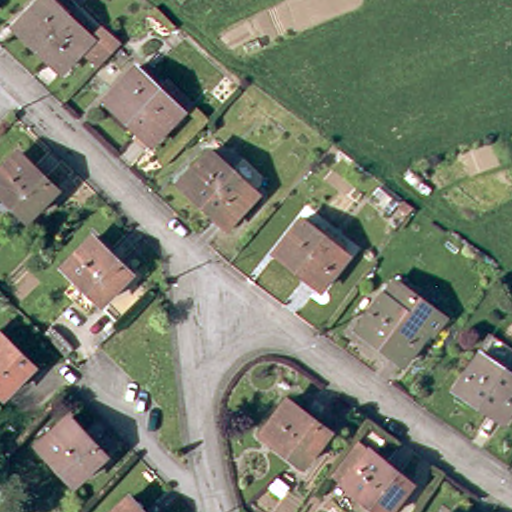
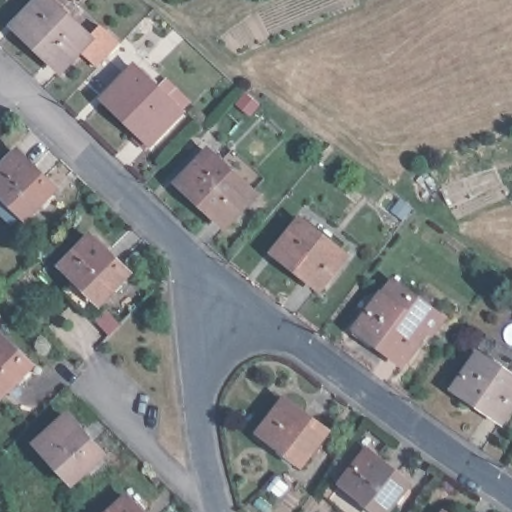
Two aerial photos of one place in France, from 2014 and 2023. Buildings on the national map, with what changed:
unchanged [(111,38),(88,62),(71,47),(53,67),(5,22),(26,0),(46,0),(82,34),(93,22),(111,38)]
unchanged [(129,132),(134,127),(100,95),(131,63),(153,84),(161,75),(186,99),(178,107),(148,139),(146,139),(141,144),(129,132)]
unchanged [(223,222),(175,179),(204,147),(252,191),(223,222)]
unchanged [(28,219),(23,216),(14,225),(0,211),(0,206),(7,199),(0,192),(0,173),(19,154),(56,190),(28,219)]
unchanged [(398,203),(389,214),(378,205),(387,194),(398,203)]
unchanged [(414,210),(408,216),(399,209),(404,202),(414,210)]
unchanged [(323,223),(342,239),(336,247),(343,252),(316,285),(270,249),(296,215),(316,231),(323,223)]
unchanged [(131,275),(101,304),(98,301),(87,312),(66,292),(77,280),(64,267),(93,238),(131,275)]
unchanged [(429,335),(424,331),(399,365),(353,330),(389,281),(441,320),(429,335)]
unchanged [(28,367),(0,395),(0,339),(28,367)]
unchanged [(455,390),(479,355),(512,377),(512,411),(504,422),(455,390)]
unchanged [(324,432),(299,466),(257,433),(282,401),(324,432)]
unchanged [(100,457),(90,466),(93,470),(88,475),(84,471),(70,485),(65,480),(61,482),(45,464),(48,462),(33,446),(64,417),(100,457)]
unchanged [(328,475),(353,443),(359,449),(336,481),(328,475)]
unchanged [(406,485),(385,512),(373,512),(339,485),(365,452),(406,485)]
unchanged [(137,512),(108,512),(124,497),(137,512)]
unchanged [(445,512),(441,512),(442,510),(445,512)]

